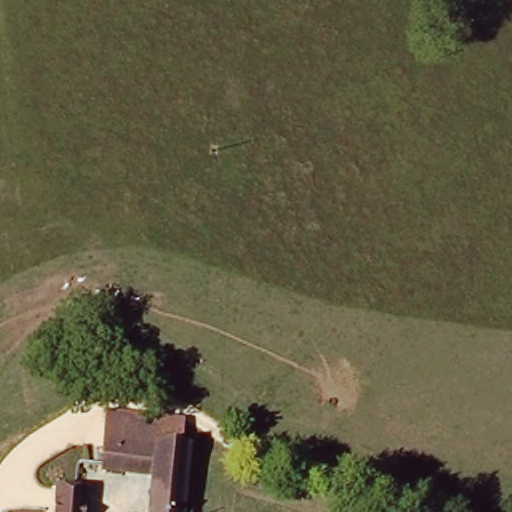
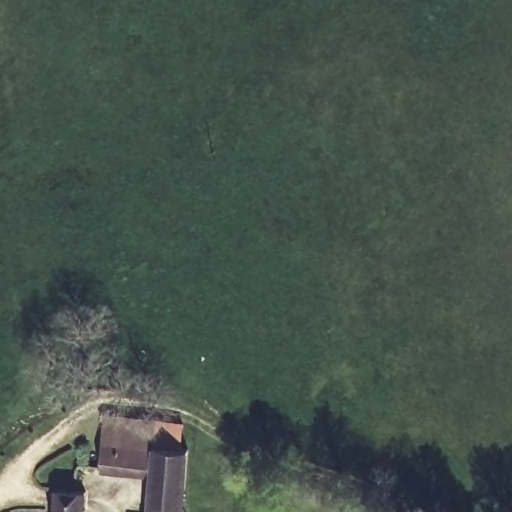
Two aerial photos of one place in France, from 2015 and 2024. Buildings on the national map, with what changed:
unchanged [(102,471),(107,421),(154,425),(185,428),(184,457),(180,512),(146,512),(148,477),(102,471)]
unchanged [(54,489),(77,492),(76,512),(52,512),(54,489)]

